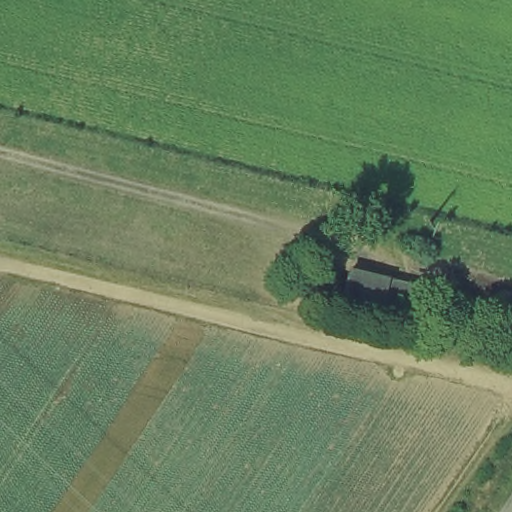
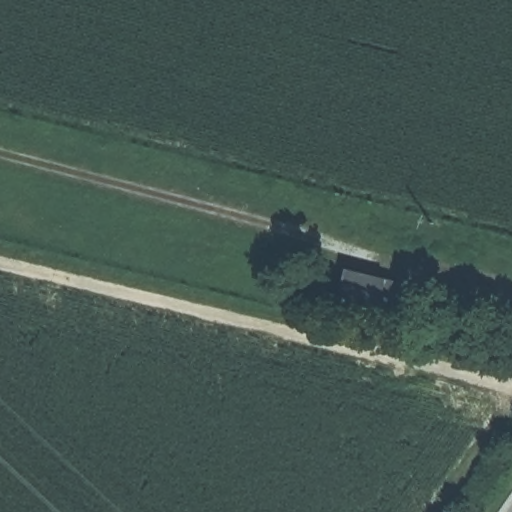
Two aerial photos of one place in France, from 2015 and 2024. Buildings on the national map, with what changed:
unchanged [(385,316),(341,307),(355,269),(393,276),(385,316)]

